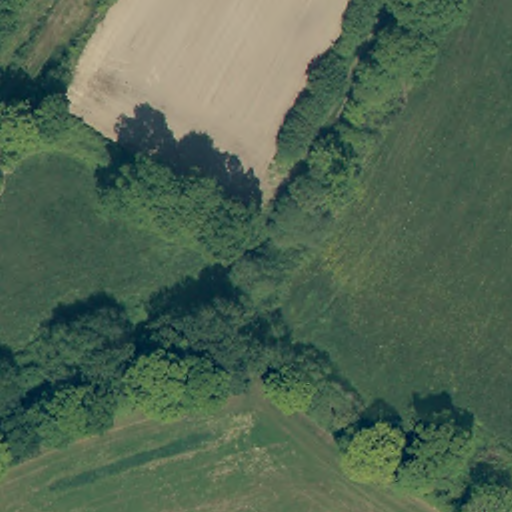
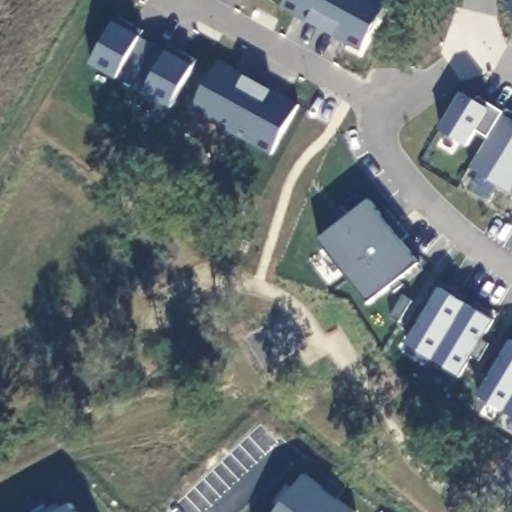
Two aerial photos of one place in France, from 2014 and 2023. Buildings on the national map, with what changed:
new [(335,0),(320,29),(280,7),(284,0),(335,0)]
new [(384,0),(387,2),(360,51),(320,29),(335,0),(384,0)]
new [(507,10),(512,0),(512,14),(507,10)]
new [(130,86),(90,64),(116,17),(142,31),(139,37),(152,45),(130,86)]
new [(165,52),(169,46),(196,60),(170,107),(130,86),(152,45),(165,52)]
new [(218,61),(258,83),(231,132),(191,111),(218,61)]
new [(258,83),(298,105),(271,154),(231,132),(258,83)]
new [(509,192),(469,169),(488,137),(477,131),(466,147),(439,131),(461,92),(475,101),(478,97),(503,113),(501,115),(512,121),(512,187),(509,192)]
new [(317,240),(339,224),(332,215),(342,207),(349,215),(369,199),(392,227),(398,222),(408,235),(402,241),(420,263),(406,273),(410,279),(397,289),(393,284),(368,303),(317,240)]
new [(417,323),(410,320),(420,302),(428,307),(439,287),(493,320),(481,339),(489,344),(478,361),(471,357),(459,376),(406,343),(417,323)]
new [(412,301),(398,322),(389,317),(402,296),(412,301)]
new [(489,376),(481,372),(491,355),(499,359),(510,340),(512,341),(512,417),(477,396),(489,376)]
new [(304,474),(323,488),(329,480),(343,490),(336,499),(353,512),(275,512),(304,474)]
new [(75,512),(56,512),(71,503),(75,512)]

